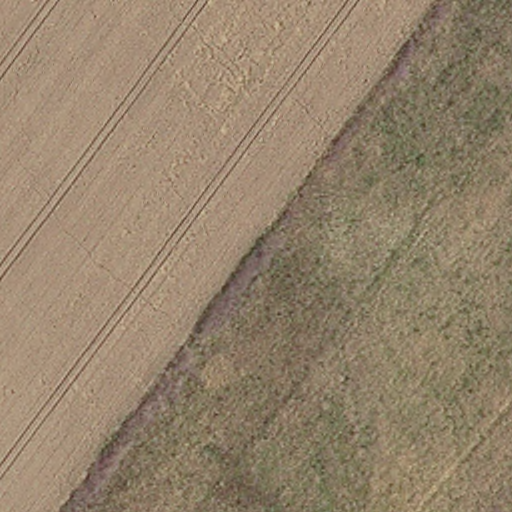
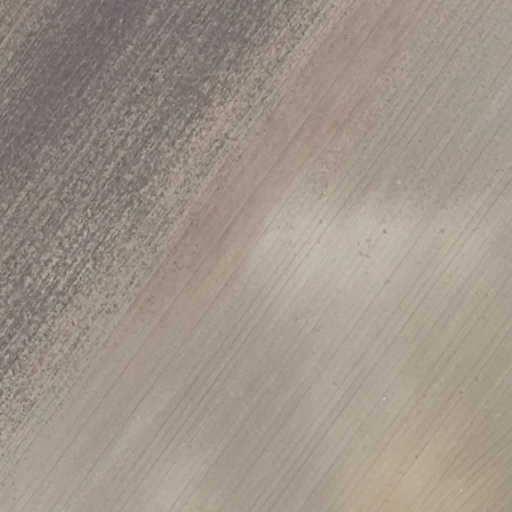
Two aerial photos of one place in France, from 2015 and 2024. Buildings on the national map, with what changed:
[]

